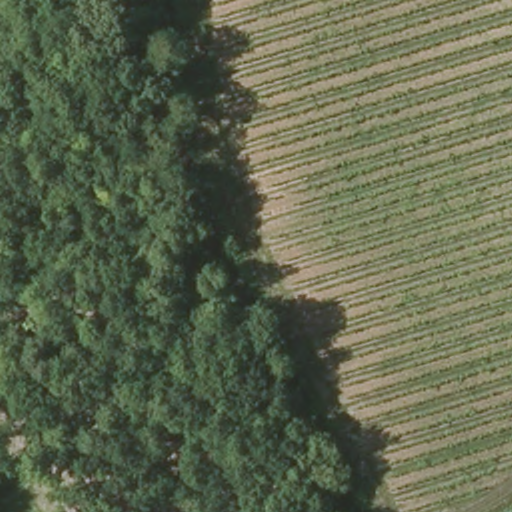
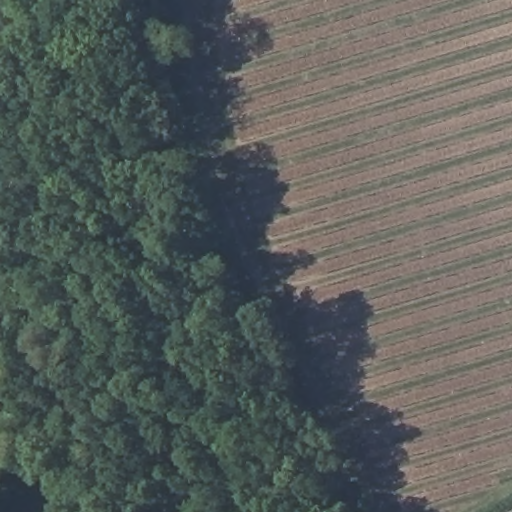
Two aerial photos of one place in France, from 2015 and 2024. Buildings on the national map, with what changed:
[]

